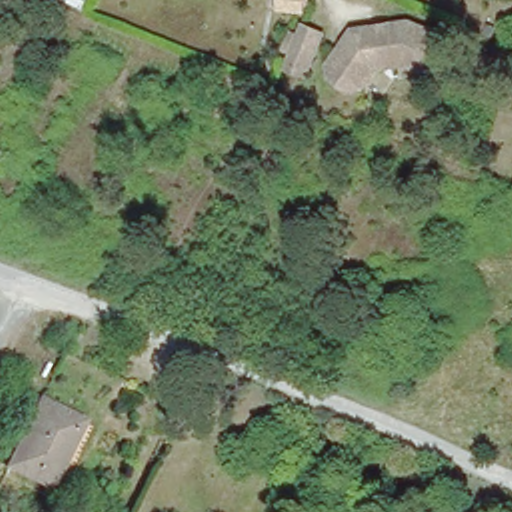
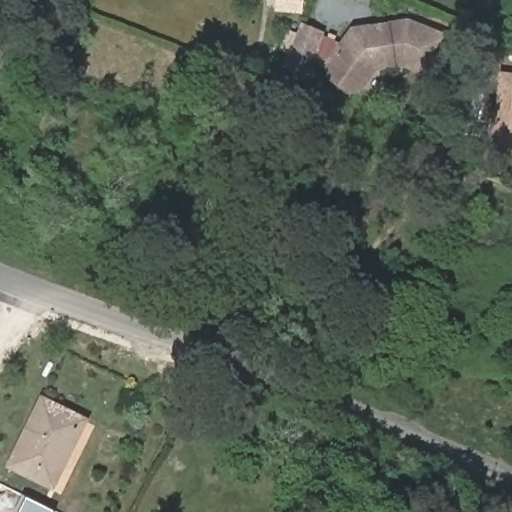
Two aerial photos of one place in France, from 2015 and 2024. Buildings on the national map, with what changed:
unchanged [(297,34),(302,23),(323,30),(306,73),(285,65),(297,34)]
unchanged [(368,37),(380,36),(380,28),(403,25),(443,39),(428,70),(406,61),(372,66),(355,86),(340,87),(323,79),(322,64),(350,31),(367,29),(368,37)]
new [(498,73),(512,74),(512,154),(494,153),(498,73)]
unchanged [(348,330),(341,347),(326,341),(332,324),(348,330)]
unchanged [(85,414),(51,485),(5,463),(38,393),(85,414)]
unchanged [(454,439),(451,447),(440,442),(444,435),(454,439)]
unchanged [(512,464),(512,473),(509,472),(512,464)]
new [(53,511),(53,512),(17,512),(24,497),(53,511)]

